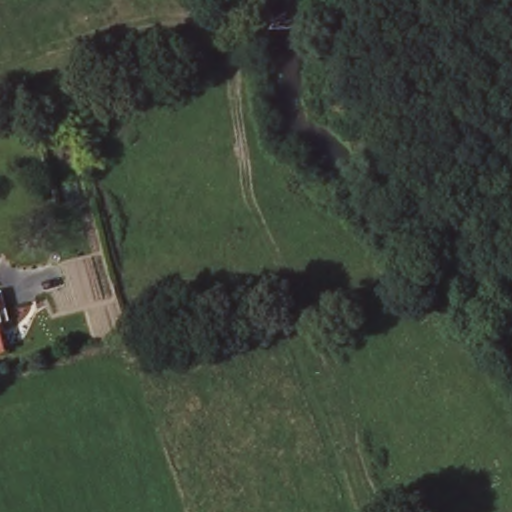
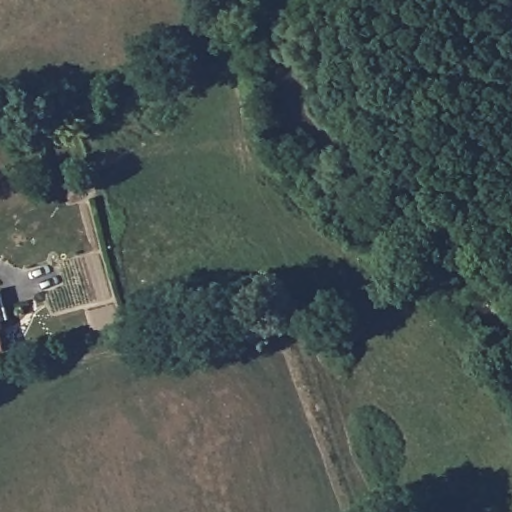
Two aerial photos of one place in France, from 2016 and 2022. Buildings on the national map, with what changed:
unchanged [(0,321),(0,303),(5,320),(0,321)]
unchanged [(0,351),(0,342),(2,351),(0,351)]

